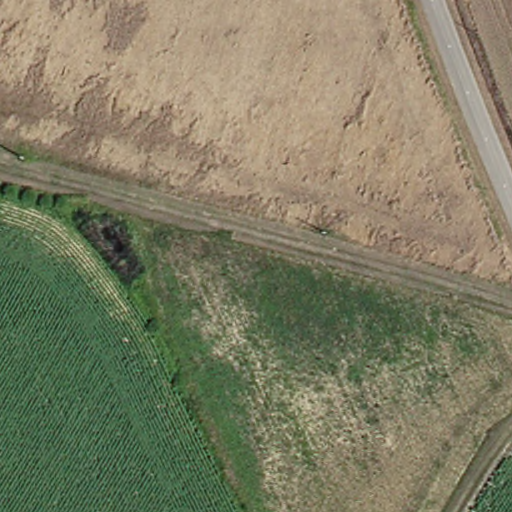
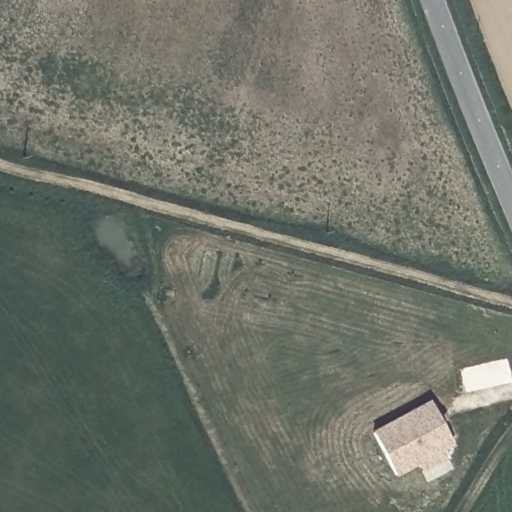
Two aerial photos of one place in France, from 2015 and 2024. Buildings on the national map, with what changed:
new [(429,402),(450,442),(392,473),(371,432),(429,402)]
new [(441,447),(445,456),(419,470),(415,462),(441,447)]

